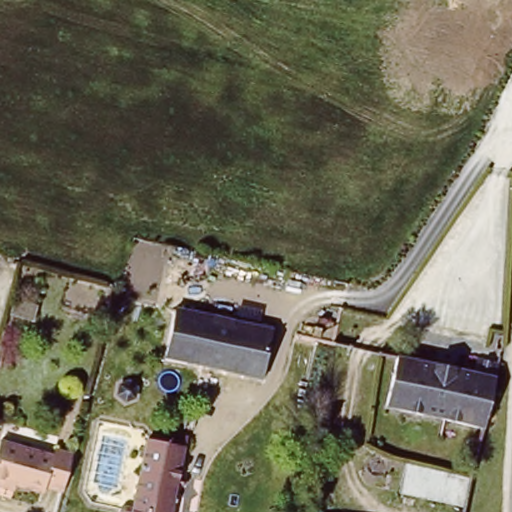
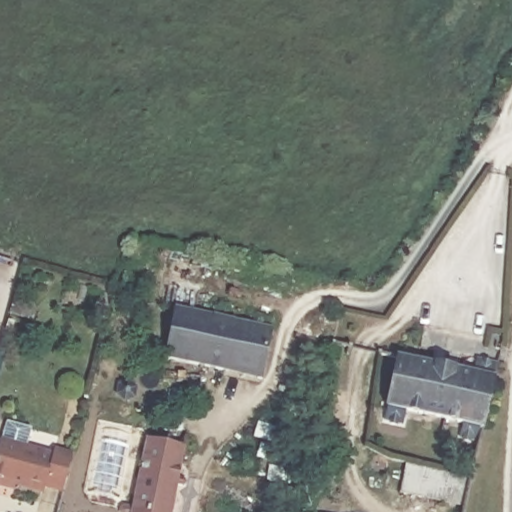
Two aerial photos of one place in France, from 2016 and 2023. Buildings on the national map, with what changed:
unchanged [(170,356),(181,308),(277,331),(266,379),(170,356)]
unchanged [(487,426),(390,402),(402,356),(499,380),(487,426)]
unchanged [(183,441),(171,512),(131,512),(148,434),(183,441)]
unchanged [(0,483),(0,439),(51,451),(53,442),(74,446),(65,486),(46,481),(44,487),(8,479),(7,484),(0,483)]
unchanged [(472,474),(464,505),(400,493),(407,461),(472,474)]

